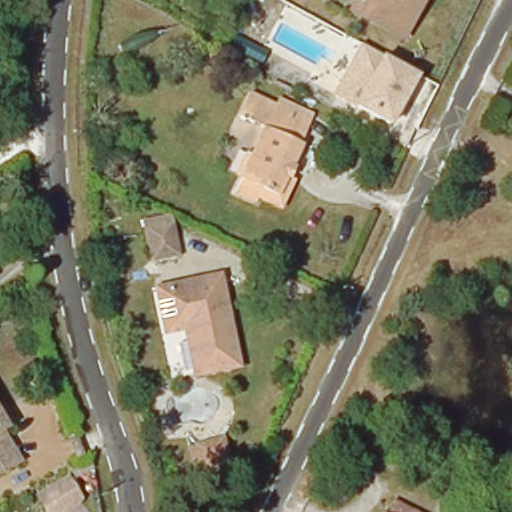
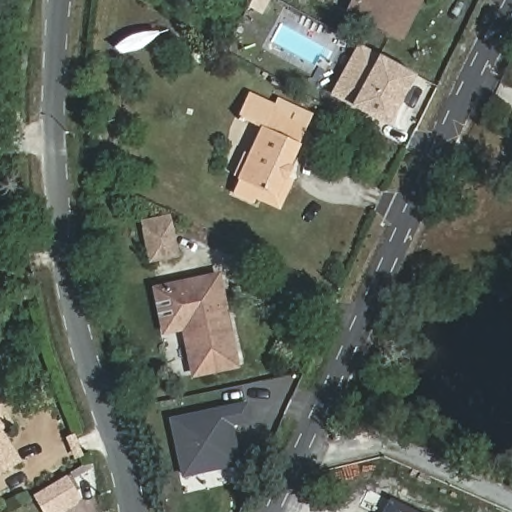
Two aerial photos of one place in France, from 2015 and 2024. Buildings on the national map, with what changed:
unchanged [(402,36),(354,10),(359,0),(421,0),(402,36)]
unchanged [(391,126),(355,105),(355,106),(333,93),(361,43),(381,55),(383,55),(420,75),(391,126)]
unchanged [(281,210),(257,199),(256,202),(238,195),(245,179),(241,177),(250,155),(254,157),(267,126),(246,117),(255,97),(276,106),(278,98),(313,111),(305,127),(284,175),(295,180),(281,210)]
unchanged [(155,261),(147,229),(145,222),(172,216),(174,223),(180,255),(155,261)]
unchanged [(232,366),(193,374),(182,327),(162,331),(153,290),(215,279),(232,366)]
new [(241,465),(183,477),(171,417),(250,401),(254,422),(234,426),(241,465)]
unchanged [(0,407),(1,408),(9,421),(4,425),(0,427),(0,408),(0,407)]
unchanged [(17,460),(0,470),(0,431),(17,460)]
demolished [(209,466),(199,469),(192,448),(202,445),(209,466)]
unchanged [(455,467),(467,474),(450,507),(437,499),(455,467)]
unchanged [(77,499),(57,512),(48,512),(36,493),(64,476),(77,499)]
unchanged [(410,512),(398,512),(400,507),(410,512)]

